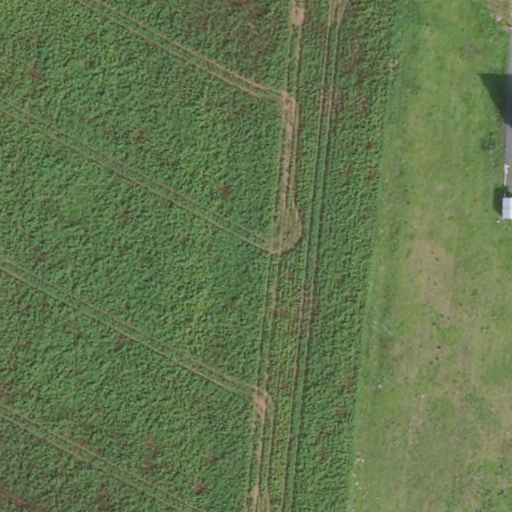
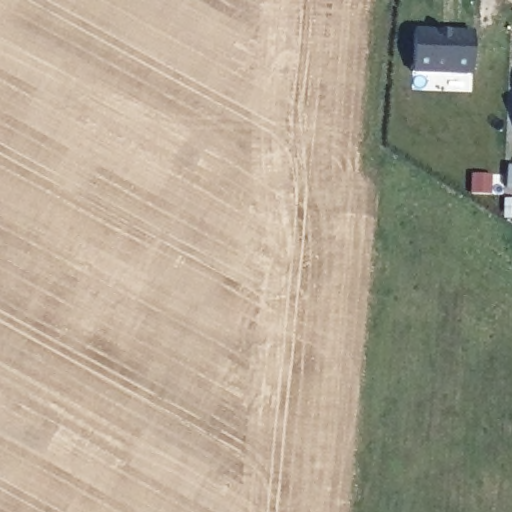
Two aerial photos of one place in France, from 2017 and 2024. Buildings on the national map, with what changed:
new [(412,76),(414,30),(443,31),(443,37),(447,37),(448,31),(473,32),(471,79),(412,76)]

